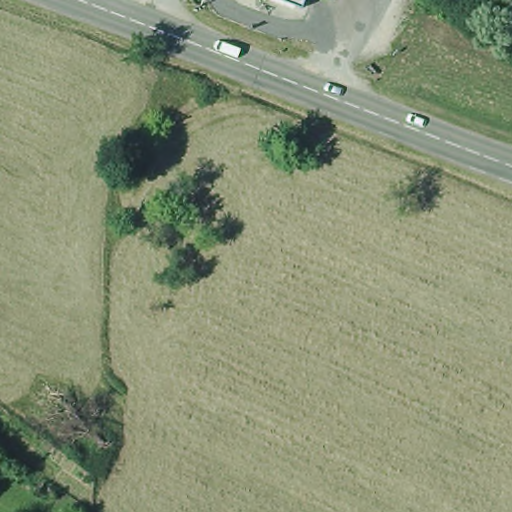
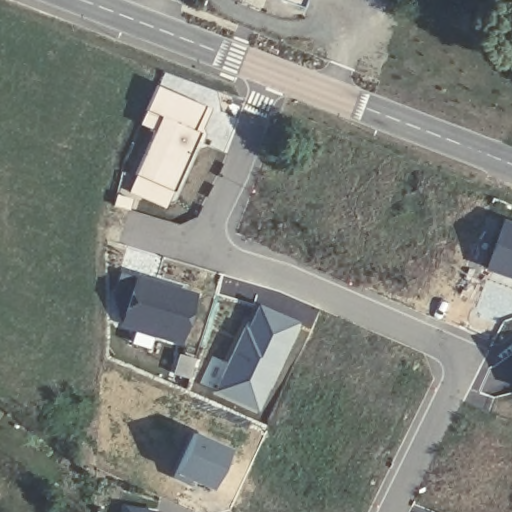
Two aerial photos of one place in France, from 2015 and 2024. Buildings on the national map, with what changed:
unchanged [(304,7),(284,0),(307,0),(304,7)]
new [(206,107),(196,131),(203,132),(176,192),(138,177),(162,118),(147,112),(158,85),(206,107)]
new [(504,217),(512,220),(512,279),(484,269),(504,217)]
new [(199,293),(184,349),(120,329),(138,275),(199,293)]
new [(212,355),(226,361),(256,302),(299,321),(280,370),(259,413),(200,383),(212,355)]
new [(192,431),(229,447),(209,488),(173,472),(192,431)]
new [(162,512),(123,512),(123,505),(163,510),(162,512)]

